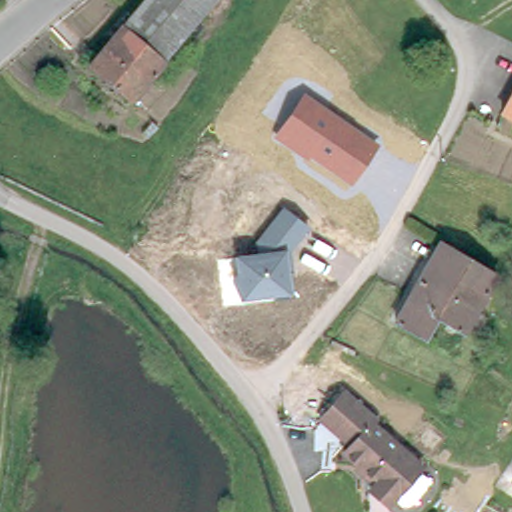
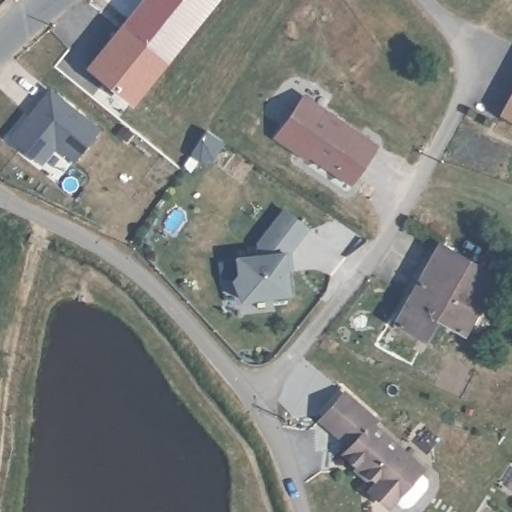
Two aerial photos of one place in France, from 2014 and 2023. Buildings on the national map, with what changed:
unchanged [(85,71),(142,0),(211,0),(209,3),(193,24),(168,54),(127,105),(85,71)]
new [(32,112),(35,114),(42,107),(38,104),(50,90),(100,129),(75,160),(56,145),(42,163),(11,138),(32,112)]
unchanged [(380,144),(353,186),(275,135),(303,92),(380,144)]
unchanged [(502,109),(512,92),(512,114),(502,109)]
new [(207,133),(223,145),(212,160),(200,163),(190,156),(207,133)]
unchanged [(309,228),(288,253),(294,296),(242,301),(232,279),(235,278),(233,257),(257,252),(255,242),(283,208),(309,228)]
unchanged [(468,334),(441,318),(428,339),(401,323),(445,243),(502,276),(486,305),(468,334)]
unchanged [(430,485),(416,501),(403,501),(393,492),(388,498),(371,483),(377,477),(343,448),(350,441),(320,414),(343,387),(375,414),(371,418),(421,462),(418,465),(427,471),(430,485)]

